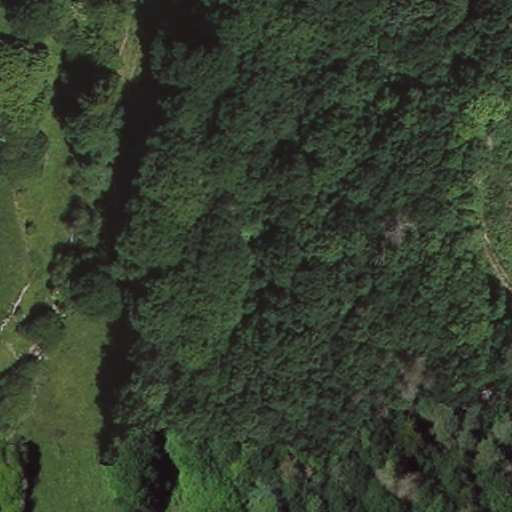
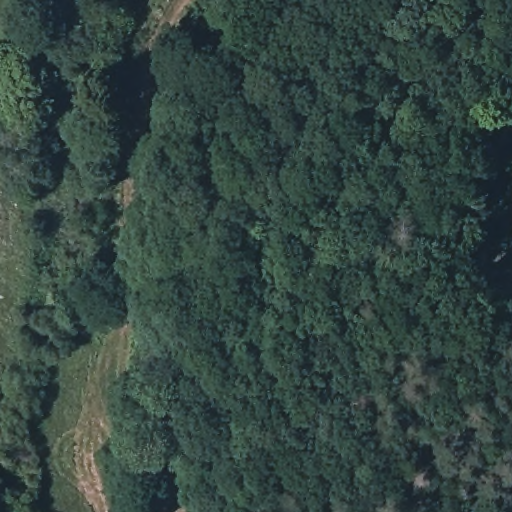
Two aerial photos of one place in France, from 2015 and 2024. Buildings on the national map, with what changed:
[]

